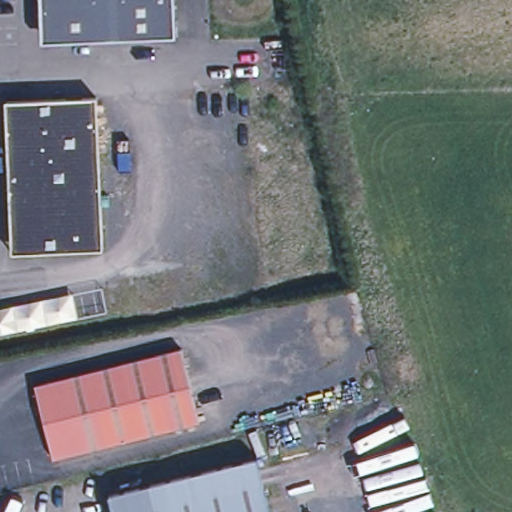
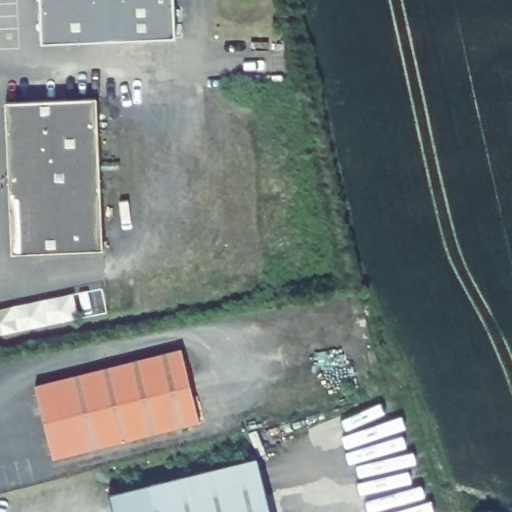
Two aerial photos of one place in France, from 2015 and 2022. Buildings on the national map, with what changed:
unchanged [(63,42),(61,0),(174,0),(176,37),(63,42)]
unchanged [(33,252),(12,254),(11,232),(5,102),(96,98),(103,250),(33,252)]
unchanged [(108,312),(85,317),(0,334),(0,310),(103,290),(108,312)]
unchanged [(181,349),(200,422),(53,459),(35,386),(181,349)]
unchanged [(258,458),(271,512),(113,512),(108,495),(258,458)]

